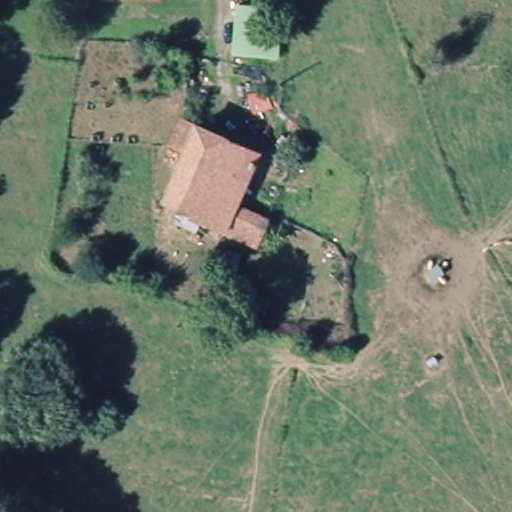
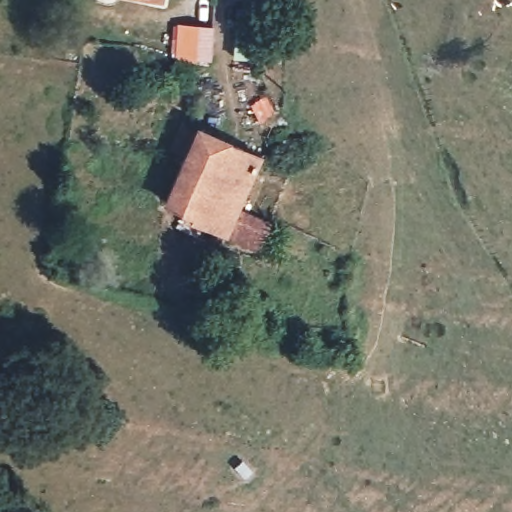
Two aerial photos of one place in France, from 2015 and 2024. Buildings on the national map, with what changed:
unchanged [(254,60),(257,19),(257,12),(280,14),(278,34),(282,34),(299,35),(296,64),(284,63),(254,60)]
new [(173,22),(213,26),(210,63),(170,59),(173,22)]
unchanged [(258,247),(232,238),(194,222),(196,214),(172,203),(190,155),(179,149),(190,123),(267,156),(244,210),(270,220),(258,247)]

